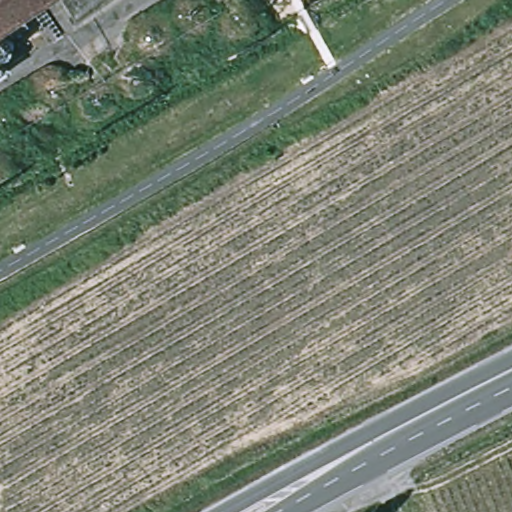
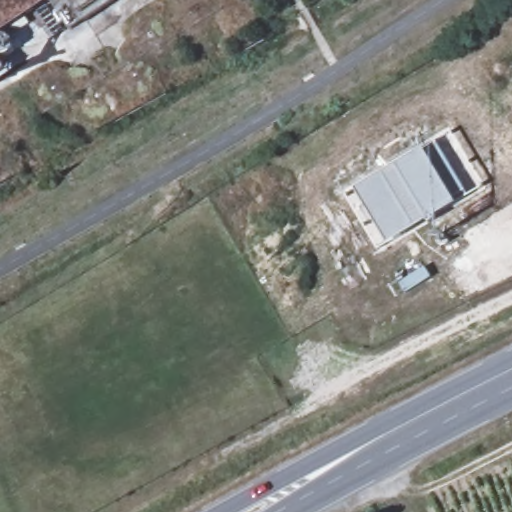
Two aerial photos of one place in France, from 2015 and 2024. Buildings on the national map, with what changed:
unchanged [(50,0),(0,33),(0,0),(50,0)]
unchanged [(66,0),(91,0),(74,11),(66,0)]
unchanged [(98,0),(120,0),(105,10),(98,0)]
unchanged [(175,6),(183,19),(174,26),(165,12),(175,6)]
new [(378,250),(344,194),(451,131),(483,187),(378,250)]

